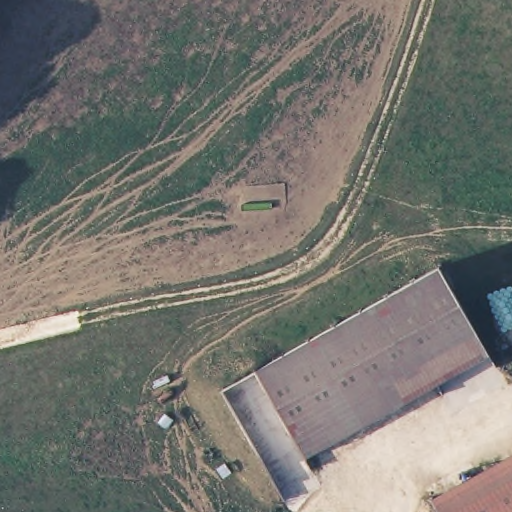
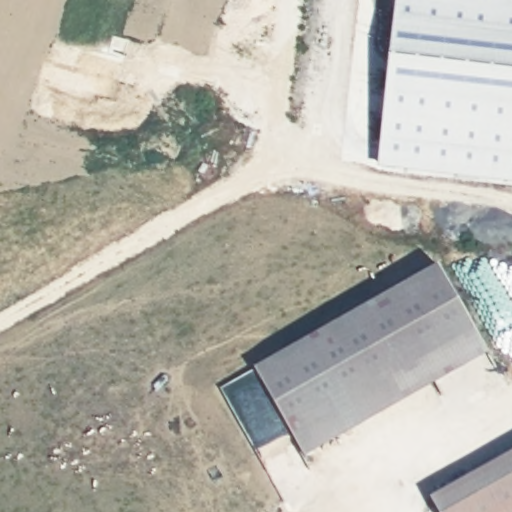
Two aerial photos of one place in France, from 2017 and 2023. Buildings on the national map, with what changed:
new [(512,0),(512,181),(379,166),(398,0),(512,0)]
unchanged [(434,272),(483,359),(299,462),(250,374),(434,272)]
unchanged [(426,504),(512,456),(512,512),(430,512),(426,504)]

